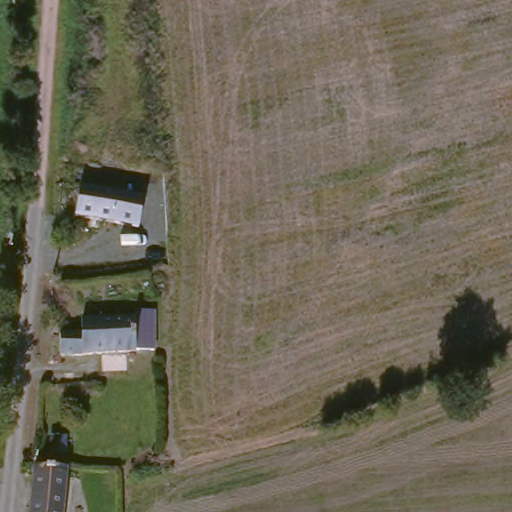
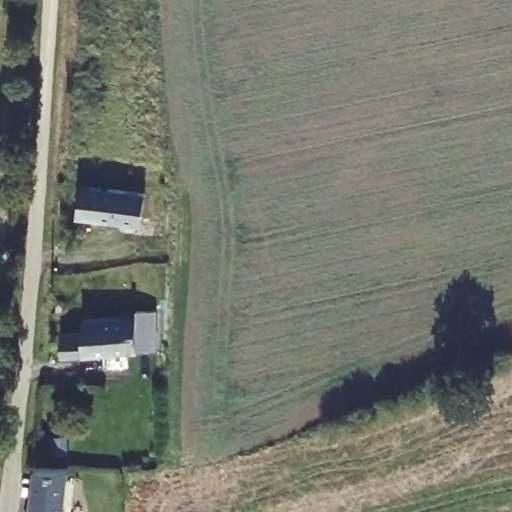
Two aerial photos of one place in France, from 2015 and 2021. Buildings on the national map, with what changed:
unchanged [(78,218),(81,186),(137,195),(132,226),(78,218)]
unchanged [(83,331),(82,319),(134,316),(133,310),(152,310),(154,348),(136,349),(136,350),(62,355),(61,333),(83,331)]
unchanged [(61,512),(29,512),(34,468),(65,470),(61,512)]

